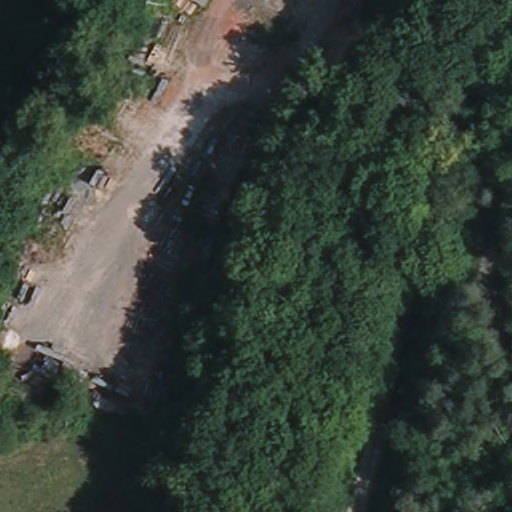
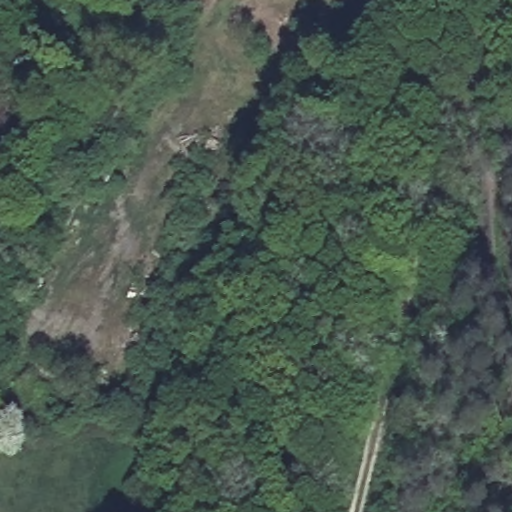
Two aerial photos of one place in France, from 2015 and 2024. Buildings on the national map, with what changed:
unchanged [(198,9),(183,0),(203,0),(198,9)]

